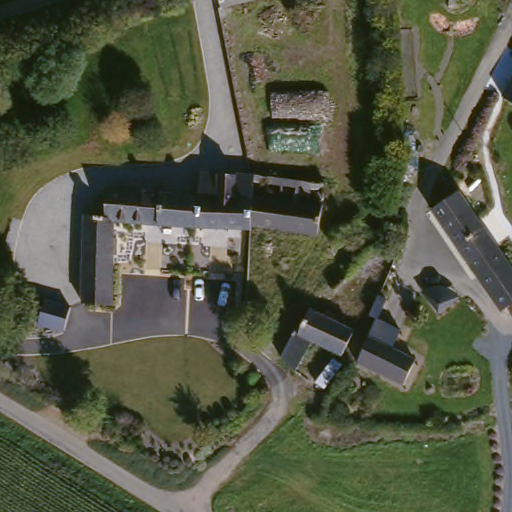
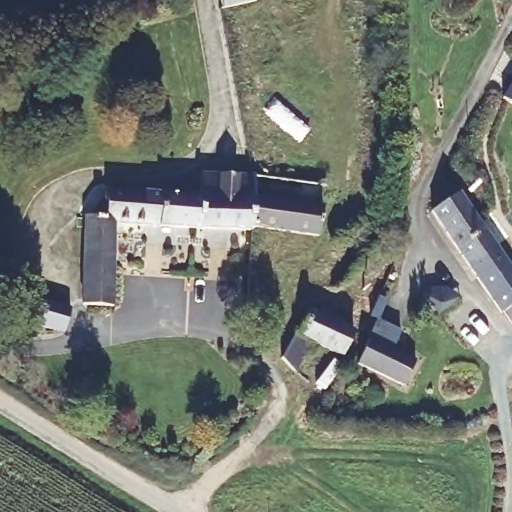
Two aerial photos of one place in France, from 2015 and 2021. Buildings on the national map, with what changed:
unchanged [(220,11),(217,0),(270,0),(220,11)]
unchanged [(512,81),(512,104),(501,97),(512,81)]
unchanged [(226,232),(225,232),(192,232),(192,230),(194,201),(196,176),(249,178),(249,203),(250,229),(250,233),(226,232)]
unchanged [(249,203),(249,178),(320,187),(315,235),(250,229),(249,203)]
unchanged [(113,221),(109,307),(80,305),(81,218),(104,220),(105,191),(194,201),(192,230),(192,232),(113,221)]
unchanged [(500,317),(469,271),(455,251),(431,216),(456,199),(480,234),(494,253),(512,279),(512,309),(500,317)]
unchanged [(37,307),(61,314),(57,337),(31,330),(37,307)]
unchanged [(310,345),(296,367),(291,371),(280,361),(290,337),(292,337),(295,338),(308,313),(341,330),(350,334),(344,346),(339,356),(330,353),(310,345)]
unchanged [(365,346),(411,368),(412,368),(400,391),(354,369),(365,346)]

